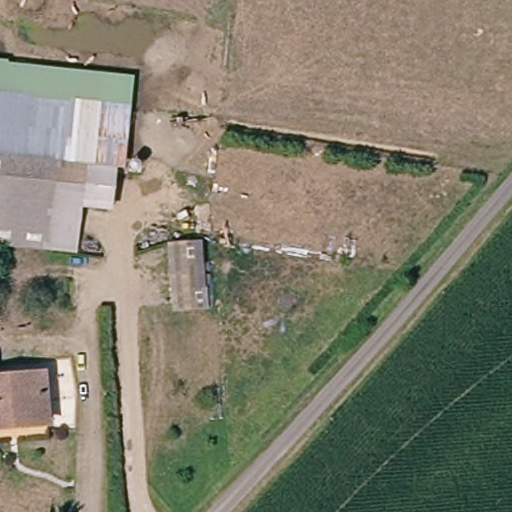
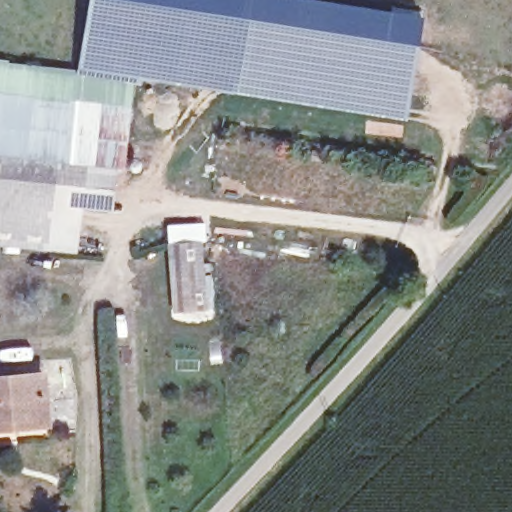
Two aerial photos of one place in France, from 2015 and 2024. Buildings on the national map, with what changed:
new [(88,0),(240,0),(227,90),(142,78),(140,85),(132,84),(133,76),(77,70),(88,0)]
new [(422,15),(406,117),(227,90),(240,0),(324,0),(422,15)]
unchanged [(0,245),(0,59),(9,59),(10,62),(133,76),(125,169),(116,168),(112,210),(82,208),(77,253),(0,245)]
unchanged [(170,244),(208,240),(213,312),(175,316),(170,244)]
unchanged [(49,433),(0,437),(0,376),(44,372),(49,433)]

